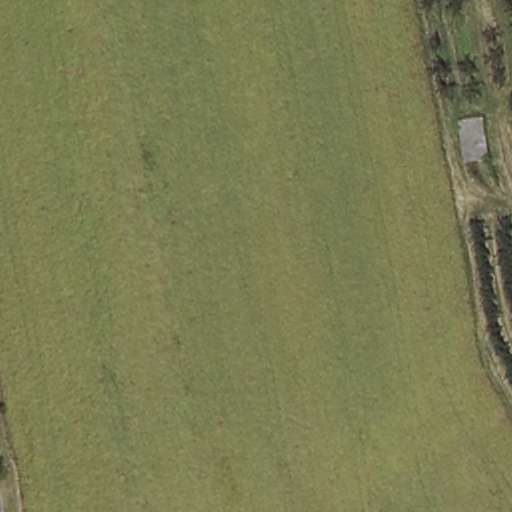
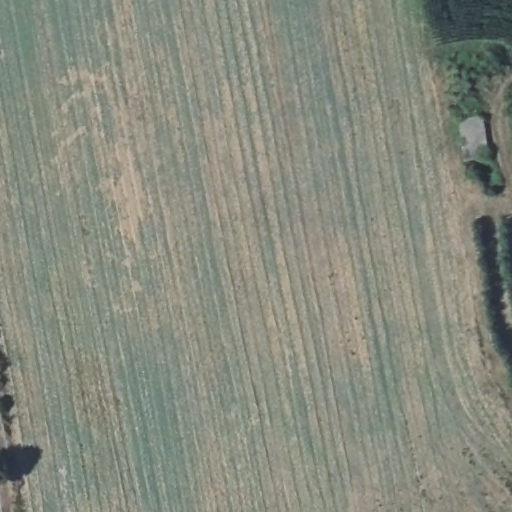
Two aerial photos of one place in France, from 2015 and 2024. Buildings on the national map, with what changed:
unchanged [(465,165),(459,121),(483,117),(495,115),(497,126),(485,129),(490,161),(465,165)]

